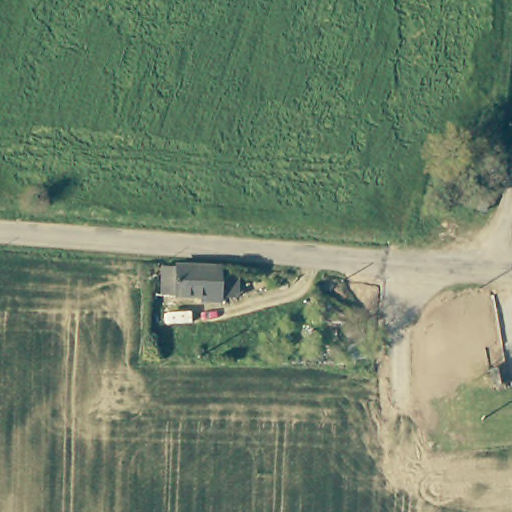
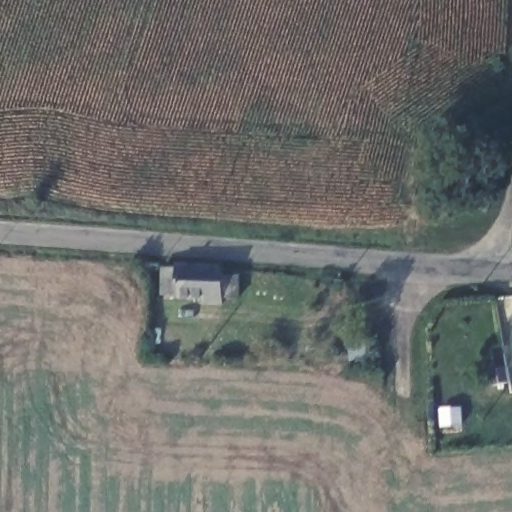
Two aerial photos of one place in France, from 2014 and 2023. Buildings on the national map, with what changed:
unchanged [(234,272),(233,301),(212,300),(211,307),(194,307),(194,301),(173,301),(173,296),(157,296),(157,268),(214,269),(234,272)]
unchanged [(512,384),(498,386),(496,369),(511,366),(512,369),(512,384)]

